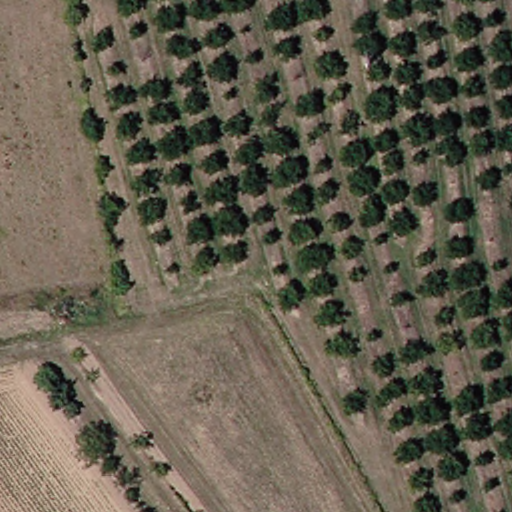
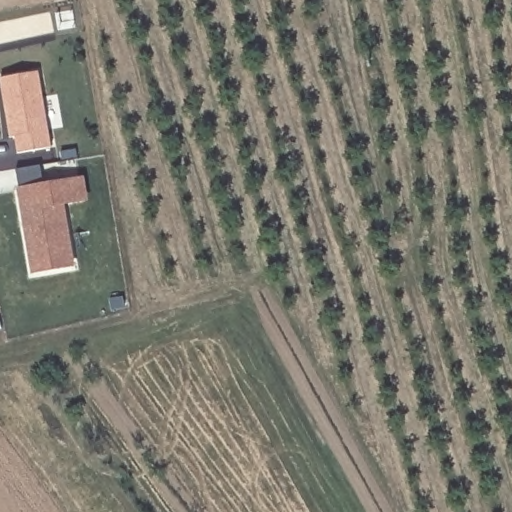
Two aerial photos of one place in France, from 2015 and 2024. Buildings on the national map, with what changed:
new [(15,137),(10,137),(0,78),(39,71),(51,148),(18,153),(15,137)]
new [(18,188),(20,187),(16,170),(41,165),(44,182),(84,176),(89,201),(65,205),(76,266),(31,275),(18,188)]

